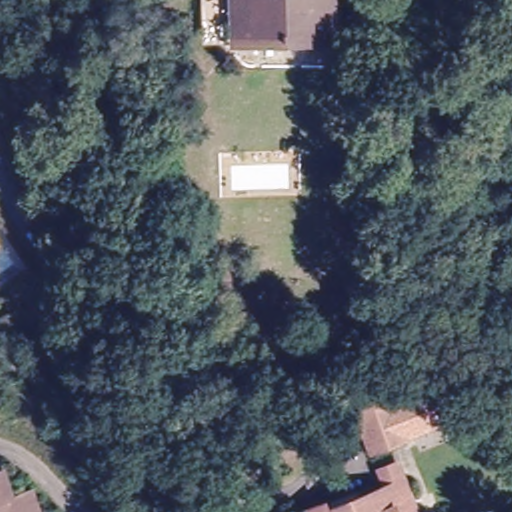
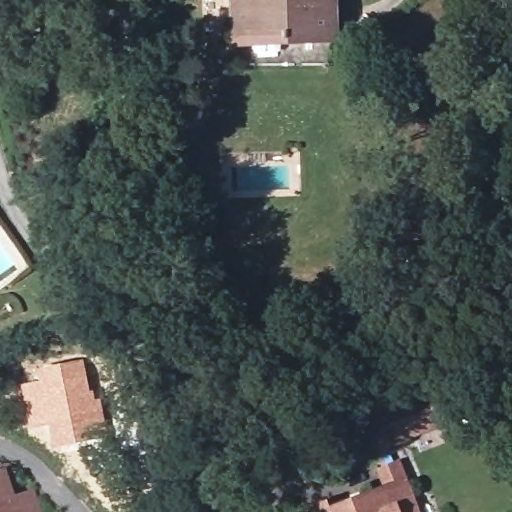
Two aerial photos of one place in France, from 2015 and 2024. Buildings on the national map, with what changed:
unchanged [(333,34),(233,39),(231,0),(332,0),(333,34)]
new [(39,379),(37,366),(83,359),(94,399),(101,398),(108,437),(53,449),(47,425),(29,429),(21,384),(39,379)]
unchanged [(391,400),(393,404),(414,396),(416,400),(432,394),(443,420),(413,432),(411,429),(405,432),(407,436),(373,450),(358,413),(391,400)]
unchanged [(398,460),(419,512),(393,512),(382,487),(375,469),(398,460)]
unchanged [(325,500),(330,509),(382,487),(393,512),(304,512),(303,510),(325,500)]
unchanged [(10,490),(17,512),(0,512),(0,493),(10,490)]

